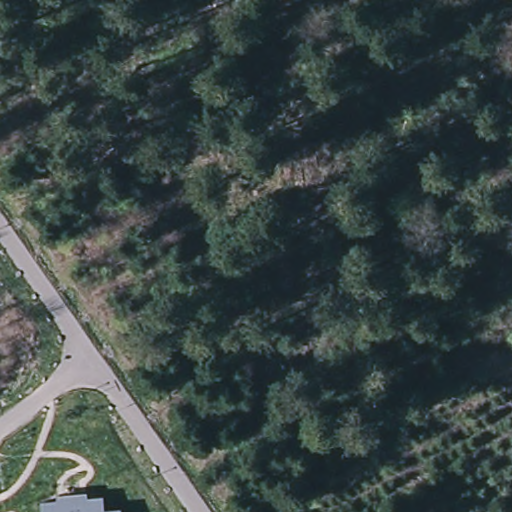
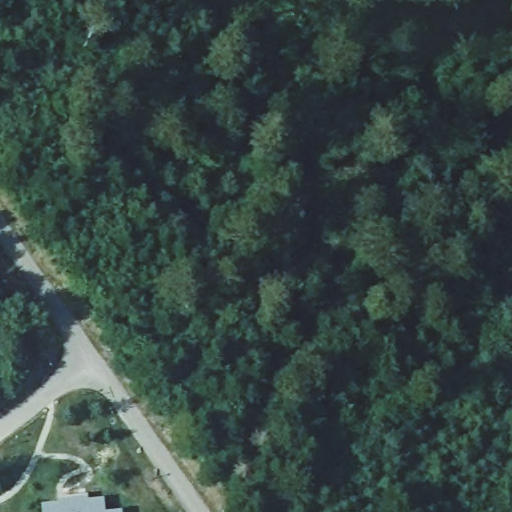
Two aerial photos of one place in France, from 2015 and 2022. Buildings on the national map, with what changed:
unchanged [(42,505),(58,503),(57,496),(64,496),(63,487),(70,487),(71,499),(64,500),(64,503),(81,502),(81,498),(73,498),(72,487),(79,486),(80,494),(86,493),(87,501),(104,500),(105,512),(42,512),(42,505)]

